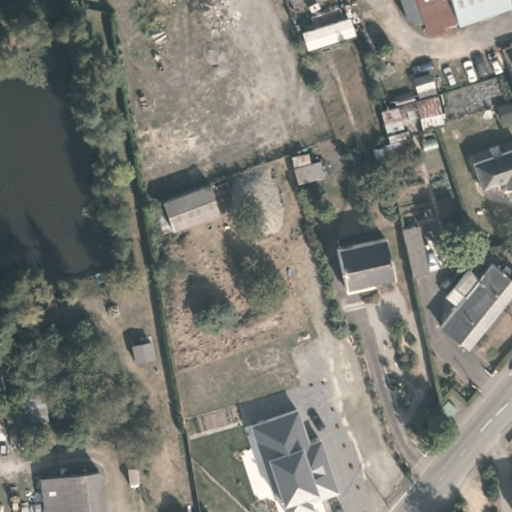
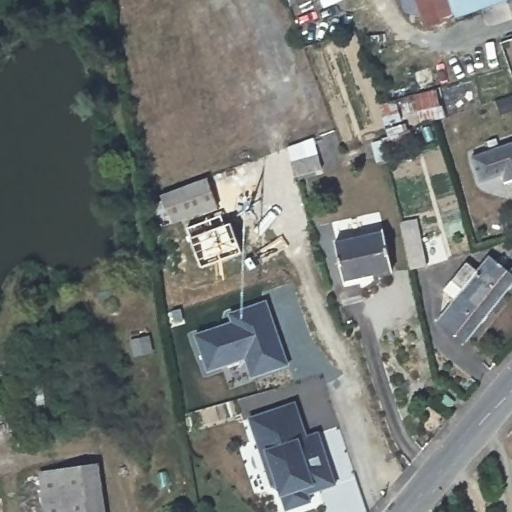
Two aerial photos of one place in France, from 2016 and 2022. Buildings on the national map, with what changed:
unchanged [(416,0),(512,0),(512,1),(426,30),(416,0)]
unchanged [(434,91),(439,120),(428,124),(416,127),(409,98),(434,91)]
unchanged [(396,99),(402,119),(386,124),(380,103),(396,99)]
unchanged [(408,128),(413,143),(387,152),(383,136),(388,135),(408,128)]
unchanged [(506,181),(503,172),(481,180),(473,156),(512,142),(512,179),(506,181)]
unchanged [(321,168),(296,174),(292,160),(290,150),(306,145),(308,155),(318,152),(321,168)]
unchanged [(207,177),(219,207),(171,224),(160,194),(207,177)]
unchanged [(405,221),(421,217),(431,264),(415,268),(405,221)]
unchanged [(384,230),(392,269),(344,280),(334,240),(363,234),(384,230)]
unchanged [(466,343),(439,322),(455,302),(444,293),(466,265),(477,274),(489,260),(512,277),(512,286),(466,343)]
new [(252,379),(246,360),(205,373),(192,335),(232,322),(229,312),(268,299),(291,365),(252,379)]
unchanged [(42,380),(46,412),(28,414),(23,382),(42,380)]
unchanged [(446,393),(454,400),(446,409),(445,407),(438,400),(444,395),(446,393)]
unchanged [(281,494),(265,450),(249,418),(294,403),(307,435),(319,432),(336,484),(307,495),(310,502),(284,510),(281,494)]
unchanged [(40,471),(98,463),(105,512),(46,512),(40,471)]
unchanged [(508,479),(512,478),(512,503),(508,479)]
unchanged [(458,512),(441,512),(441,511),(457,509),(458,512)]

